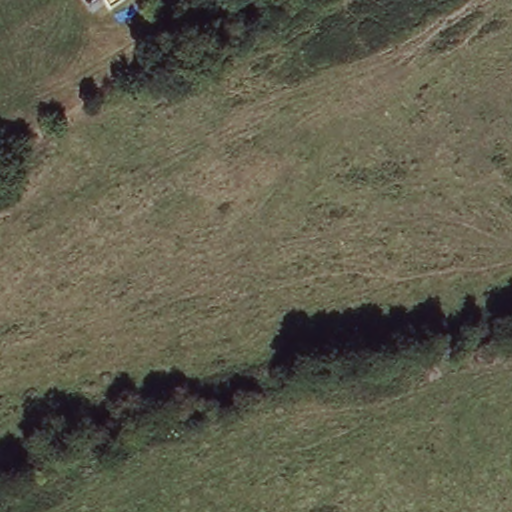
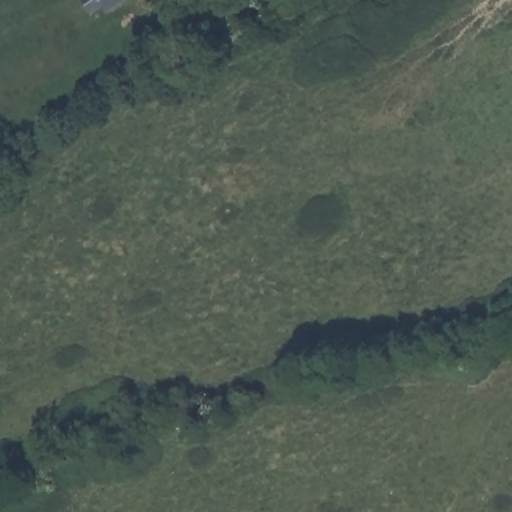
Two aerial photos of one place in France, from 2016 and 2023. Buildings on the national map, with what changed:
unchanged [(113,3),(100,11),(92,0),(122,0),(114,6),(113,3)]

